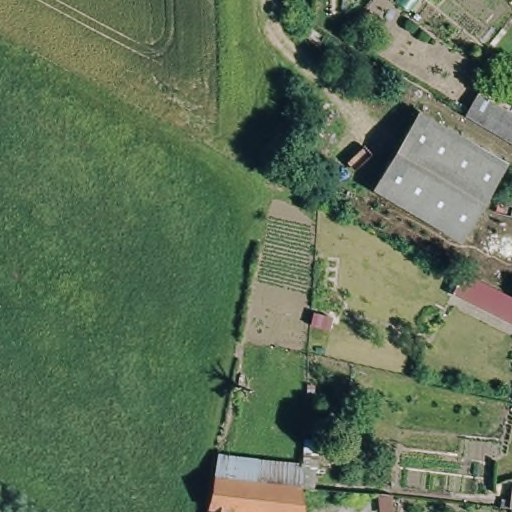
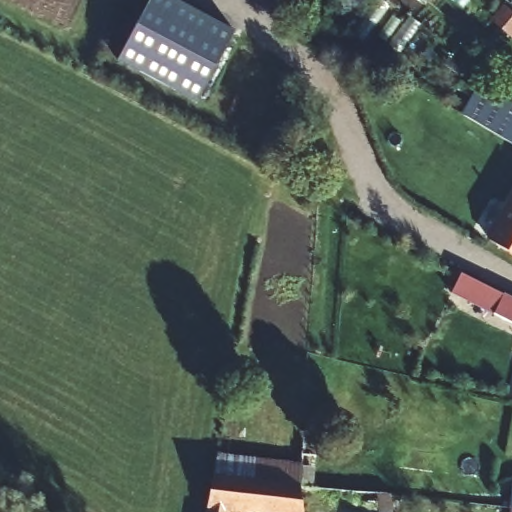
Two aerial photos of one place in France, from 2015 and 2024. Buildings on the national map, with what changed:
new [(235,31),(197,102),(118,60),(150,0),(177,0),(235,31)]
unchanged [(484,97),(512,113),(512,145),(470,121),(484,97)]
demolished [(451,125),(507,157),(483,199),(462,235),(375,186),(420,107),(451,125)]
new [(489,241),(512,202),(512,255),(489,241)]
unchanged [(459,268),(512,294),(512,318),(449,288),(459,268)]
demolished [(512,276),(512,291),(505,287),(512,276)]
unchanged [(308,491),(310,512),(263,512),(233,509),(233,512),(204,512),(215,451),(306,459),(307,476),(308,491)]

